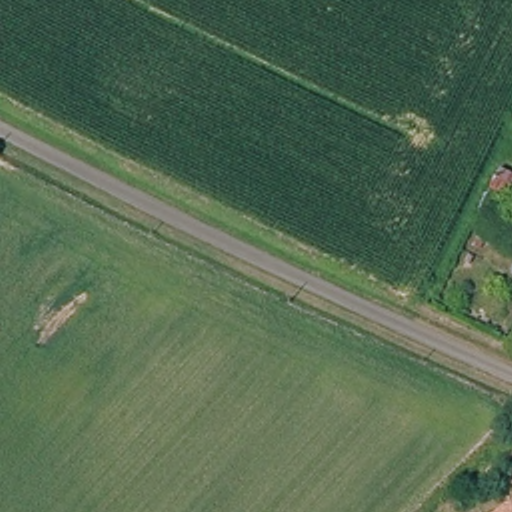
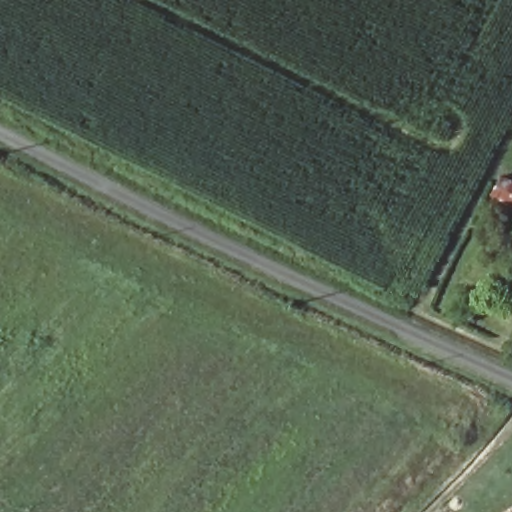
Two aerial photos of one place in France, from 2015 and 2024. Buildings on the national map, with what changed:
unchanged [(493,197),(502,180),(512,184),(512,206),(493,197)]
unchanged [(468,498),(463,494),(512,443),(512,453),(468,498)]
unchanged [(512,506),(512,512),(503,512),(512,506)]

